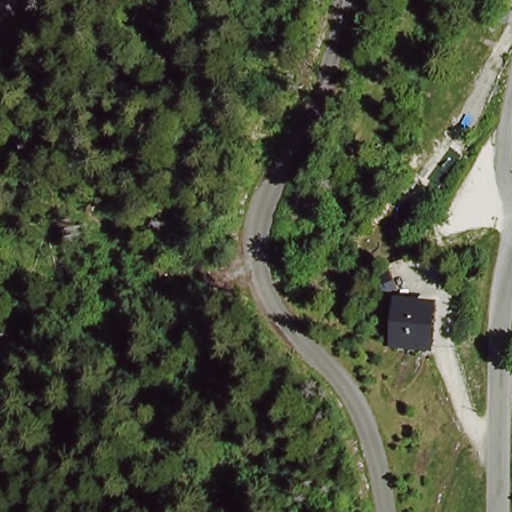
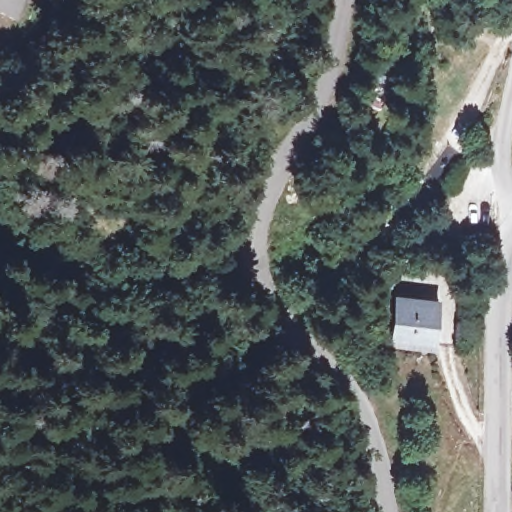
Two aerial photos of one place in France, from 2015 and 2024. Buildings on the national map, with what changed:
unchanged [(397,339),(402,303),(431,306),(426,342),(397,339)]

